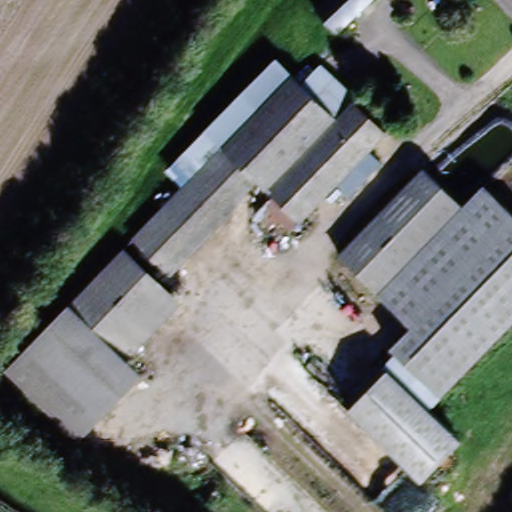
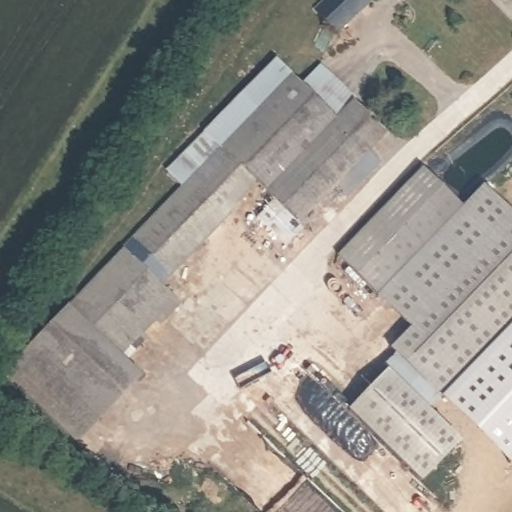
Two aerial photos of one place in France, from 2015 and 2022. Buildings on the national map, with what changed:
unchanged [(330,39),(306,15),(323,0),(371,0),(330,39)]
unchanged [(127,243),(216,151),(201,135),(273,62),(309,97),(329,79),(352,104),(383,139),(365,160),(376,170),(343,203),(333,193),(280,243),(250,217),(266,201),(257,192),(166,279),(127,243)]
unchanged [(420,174),(463,215),(378,299),(336,258),(420,174)]
unchanged [(463,215),(485,191),(512,216),(512,324),(426,413),(462,446),(421,490),(343,418),(383,378),(374,369),(409,334),(378,299),(463,215)]
unchanged [(60,305),(106,246),(170,297),(120,358),(61,306),(60,305)]
unchanged [(61,306),(120,358),(137,372),(77,443),(3,380),(61,306)]
new [(512,324),(512,455),(510,456),(448,390),(512,324)]

